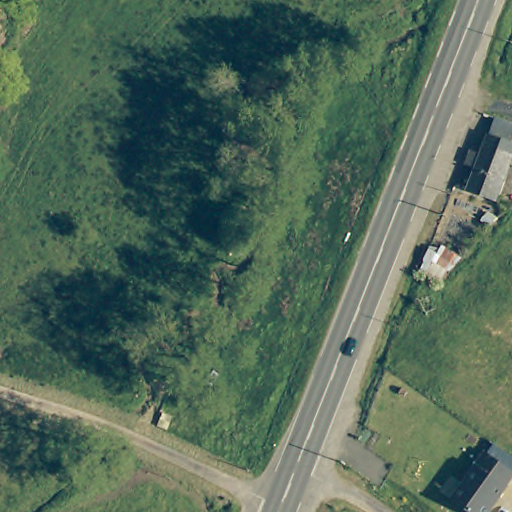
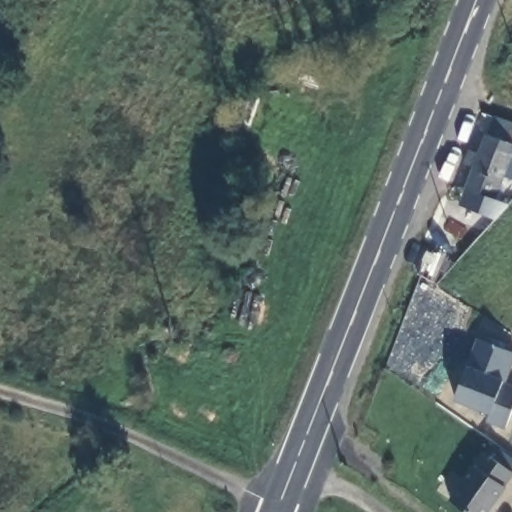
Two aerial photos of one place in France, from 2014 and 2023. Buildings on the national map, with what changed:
unchanged [(489,203),(462,191),(489,130),(512,139),(512,169),(505,166),(489,203)]
new [(512,368),(506,381),(512,383),(512,414),(506,429),(486,421),(490,413),(454,400),(468,366),(477,338),(512,350),(512,368)]
unchanged [(460,484),(484,451),(488,453),(495,443),(512,457),(512,480),(488,512),(469,512),(443,493),(452,479),(460,484)]

